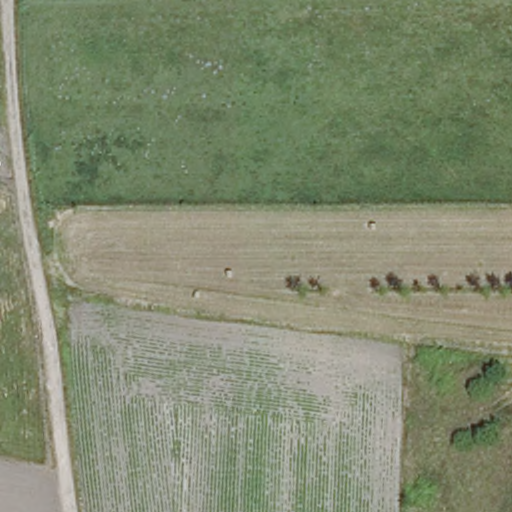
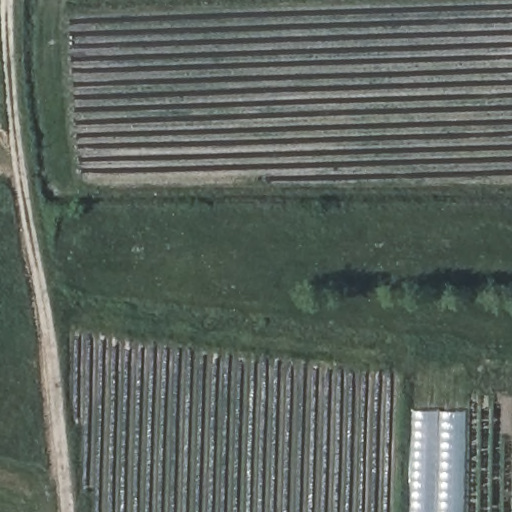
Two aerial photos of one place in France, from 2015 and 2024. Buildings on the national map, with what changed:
new [(416,411),(464,411),(462,512),(414,512),(416,411)]

